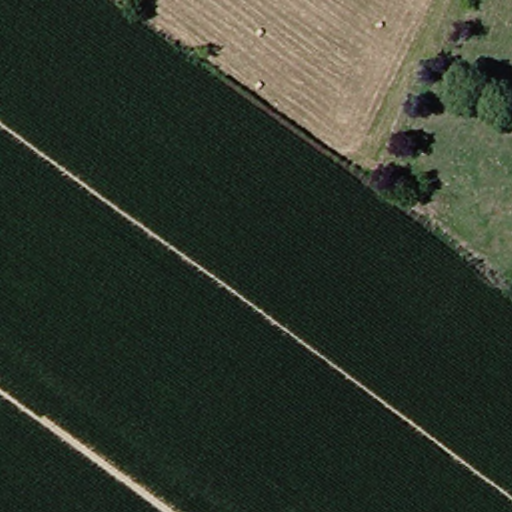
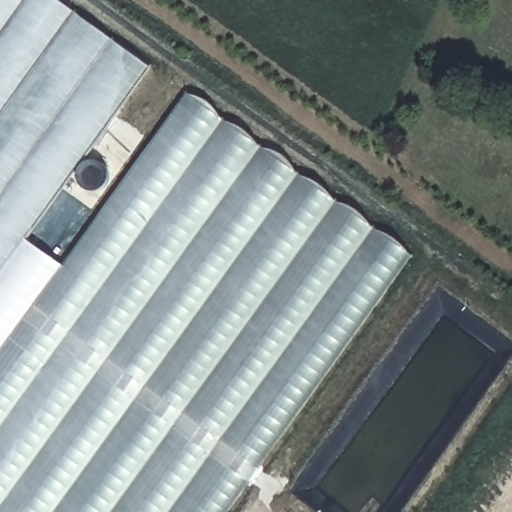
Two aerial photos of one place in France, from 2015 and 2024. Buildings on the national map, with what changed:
new [(60,0),(151,66),(27,238),(64,265),(189,92),(414,255),(228,512),(0,512),(0,0),(60,0)]

